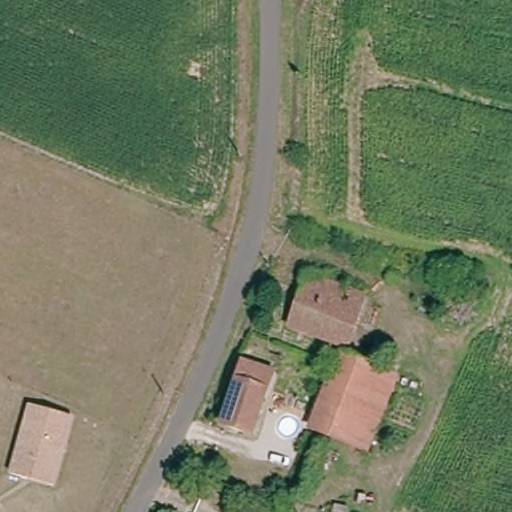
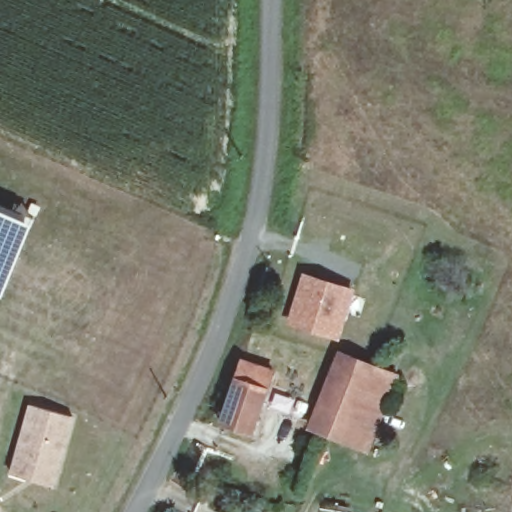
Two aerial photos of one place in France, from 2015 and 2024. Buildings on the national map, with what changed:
new [(37,219),(2,298),(0,297),(0,203),(37,219)]
unchanged [(303,295),(287,287),(293,271),(366,298),(348,347),(294,327),(303,295)]
unchanged [(403,378),(372,456),(317,432),(346,355),(403,378)]
unchanged [(278,371),(255,436),(225,424),(249,360),(278,371)]
unchanged [(10,475),(28,404),(73,417),(56,489),(10,475)]

